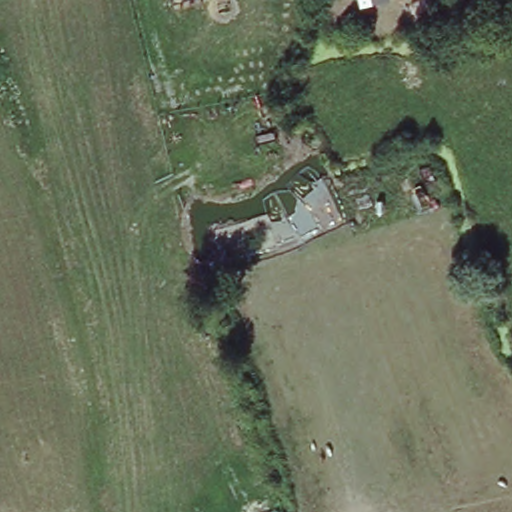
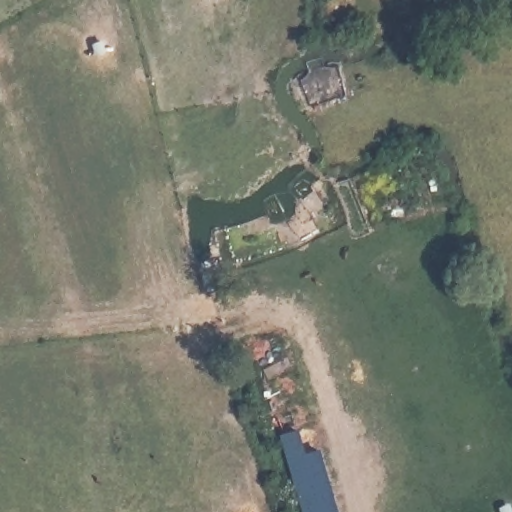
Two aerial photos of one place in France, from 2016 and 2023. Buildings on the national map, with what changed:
new [(427,163),(432,185),(408,190),(402,170),(427,163)]
new [(336,512),(298,512),(277,438),(295,431),(303,458),(317,450),(336,512)]

